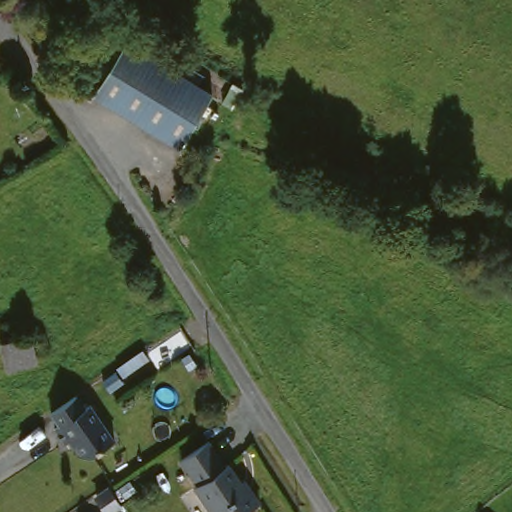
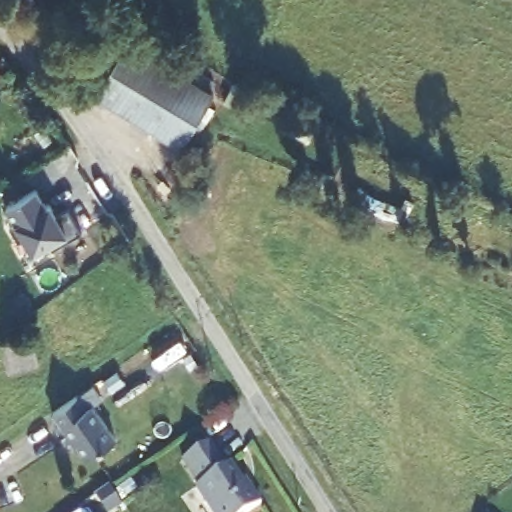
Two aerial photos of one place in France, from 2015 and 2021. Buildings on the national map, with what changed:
unchanged [(129,43),(217,89),(188,143),(99,95),(129,43)]
new [(39,194),(47,210),(51,209),(57,220),(70,214),(82,239),(51,254),(49,248),(33,257),(25,240),(19,244),(10,229),(16,226),(8,209),(39,194)]
unchanged [(4,338),(35,331),(41,358),(11,364),(4,338)]
unchanged [(96,454),(88,452),(79,437),(71,441),(62,425),(67,422),(60,409),(85,394),(93,407),(99,404),(121,440),(96,454)]
unchanged [(258,487),(268,503),(252,512),(223,512),(205,483),(208,481),(192,456),(220,439),(235,464),(239,463),(255,489),(258,487)]
unchanged [(97,488),(115,478),(128,499),(111,509),(97,488)]

